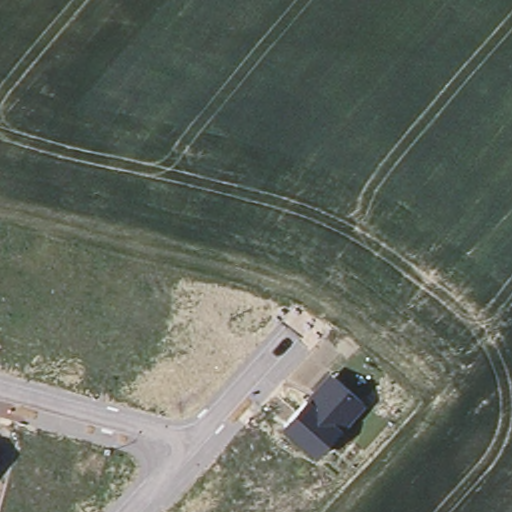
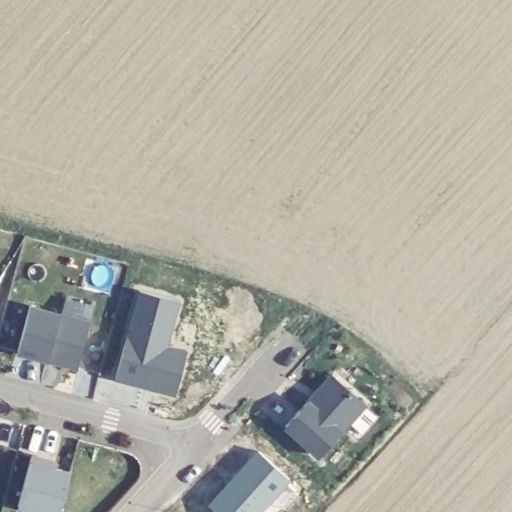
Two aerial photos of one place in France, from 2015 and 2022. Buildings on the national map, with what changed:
new [(180,304),(170,349),(187,352),(177,398),(115,381),(138,293),(180,304)]
new [(17,353),(30,306),(88,322),(77,370),(17,353)]
unchanged [(366,404),(316,458),(280,426),(330,371),(366,404)]
new [(258,451),(291,482),(265,512),(215,512),(210,507),(258,451)]
new [(17,506),(29,460),(69,472),(59,512),(37,512),(17,506)]

